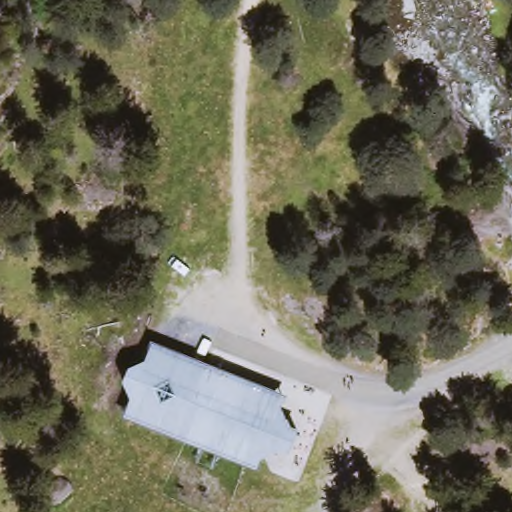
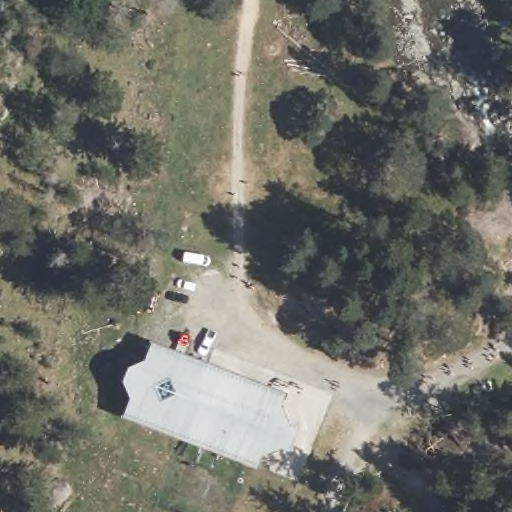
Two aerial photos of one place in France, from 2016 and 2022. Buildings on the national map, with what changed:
unchanged [(128,418),(134,396),(124,379),(130,364),(149,358),(153,341),(293,394),(287,403),(287,430),(298,435),(290,458),(269,458),(259,475),(213,459),(128,418)]

